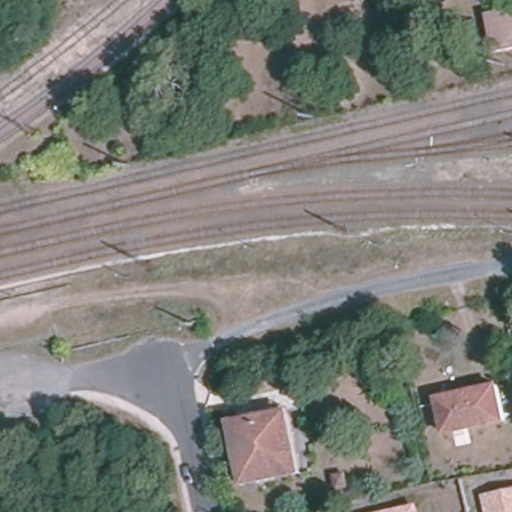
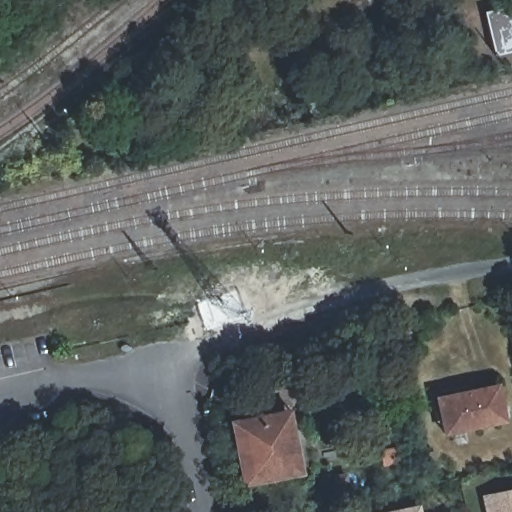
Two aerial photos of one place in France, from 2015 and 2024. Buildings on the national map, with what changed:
unchanged [(512,10),(512,45),(497,48),(489,15),(512,10)]
unchanged [(438,399),(496,387),(503,420),(445,432),(438,399)]
unchanged [(229,421),(290,408),(302,474),(242,486),(229,421)]
unchanged [(512,489),(512,512),(487,512),(483,495),(512,489)]
unchanged [(424,512),(384,512),(422,504),(424,512)]

